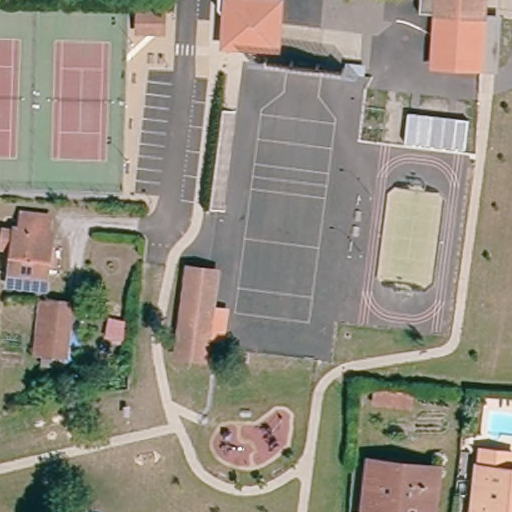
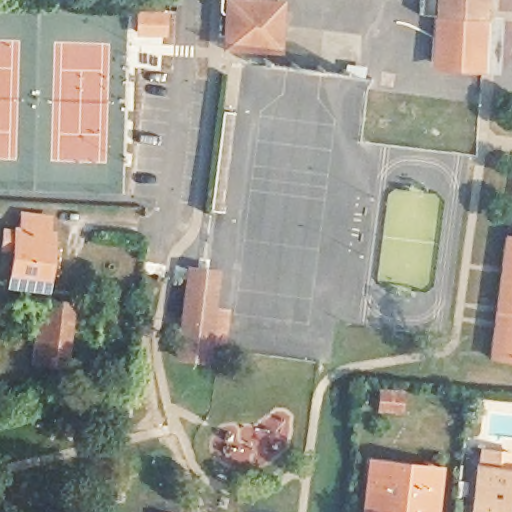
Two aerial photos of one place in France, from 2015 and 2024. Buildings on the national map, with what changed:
unchanged [(220,49),(222,14),(219,12),(218,9),(219,0),(284,0),(281,52),(220,49)]
unchanged [(416,14),(417,0),(442,0),(484,5),(482,20),(416,14)]
unchanged [(442,0),(484,0),(484,5),(442,0)]
unchanged [(482,20),(483,14),(502,15),(499,72),(430,68),(433,15),(482,20)]
unchanged [(158,39),(141,37),(143,21),(160,21),(158,39)]
unchanged [(205,217),(217,119),(236,118),(225,218),(205,217)]
unchanged [(40,216),(41,230),(47,230),(46,280),(8,280),(9,251),(0,250),(0,235),(6,235),(15,224),(15,215),(40,216)]
new [(512,362),(487,359),(503,232),(512,233),(512,362)]
unchanged [(211,276),(199,367),(161,362),(179,271),(211,276)]
unchanged [(45,373),(45,365),(32,365),(38,306),(75,310),(72,326),(66,366),(65,374),(57,374),(45,373)]
unchanged [(429,512),(367,512),(367,480),(367,457),(390,459),(430,461),(429,512)]
unchanged [(481,463),(512,467),(512,512),(478,512),(481,463)]

